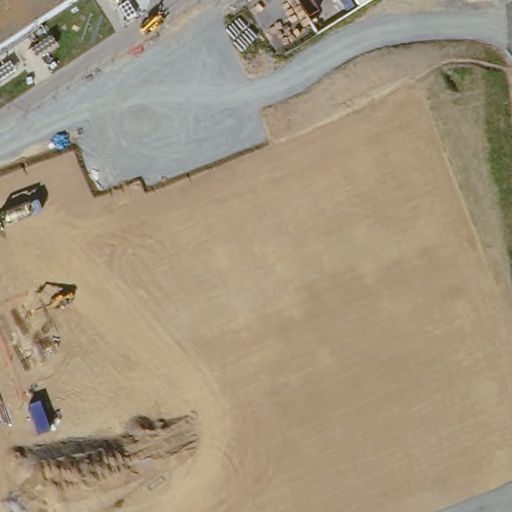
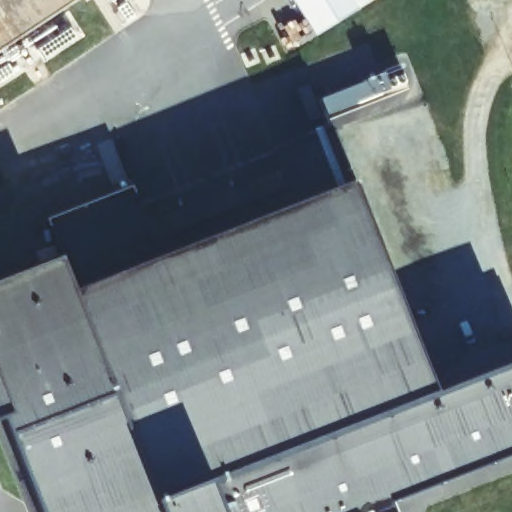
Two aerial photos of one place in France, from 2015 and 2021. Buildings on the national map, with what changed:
unchanged [(0,51),(0,0),(80,0),(79,1),(0,51)]
unchanged [(347,0),(375,0),(356,14),(347,0)]
new [(410,83),(327,116),(320,99),(402,65),(410,83)]
new [(323,130),(330,126),(354,184),(423,361),(510,335),(512,341),(512,453),(389,501),(394,512),(40,512),(2,418),(0,418),(0,279),(61,258),(46,219),(132,187),(147,226),(286,171),(277,148),(315,133),(297,89),(307,85),(323,130)]

